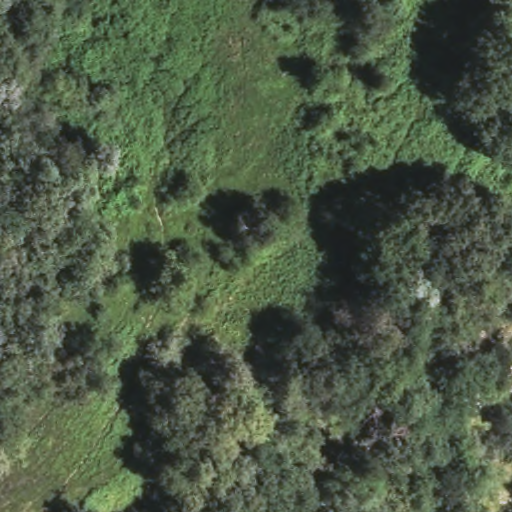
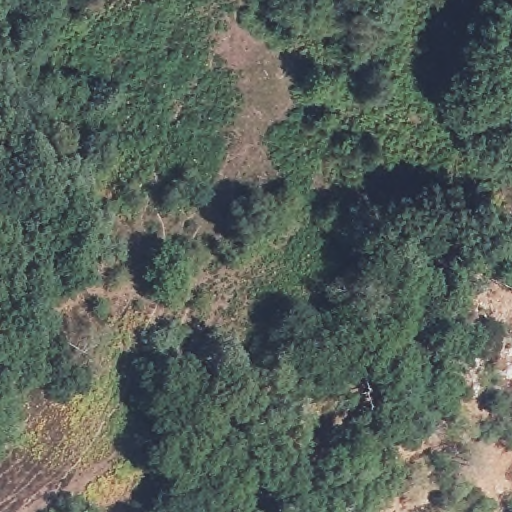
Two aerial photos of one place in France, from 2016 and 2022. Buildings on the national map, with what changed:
unchanged [(86,23),(53,19),(56,0),(91,0),(86,23)]

